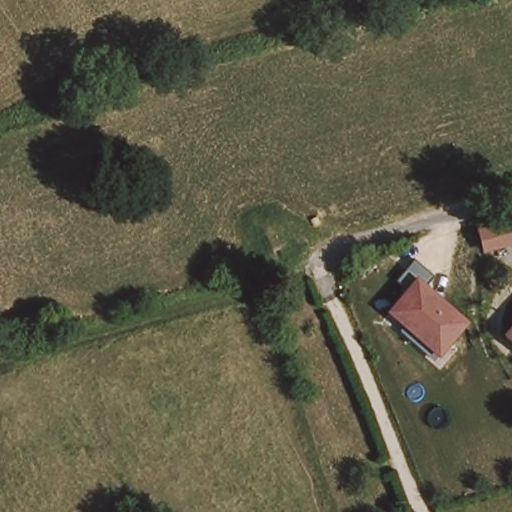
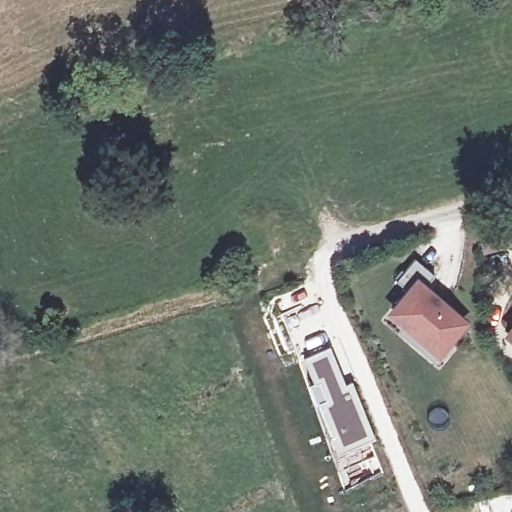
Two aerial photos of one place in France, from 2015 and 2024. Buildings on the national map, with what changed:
unchanged [(493,229),(512,224),(512,243),(498,247),(493,229)]
unchanged [(404,288),(396,282),(414,259),(432,277),(426,286),(467,321),(433,360),(397,331),(401,326),(386,312),(404,288)]
unchanged [(507,325),(512,319),(512,329),(507,325)]
new [(335,342),(372,437),(338,452),(331,435),(333,434),(319,402),(312,404),(306,386),(315,382),(303,355),(335,342)]

